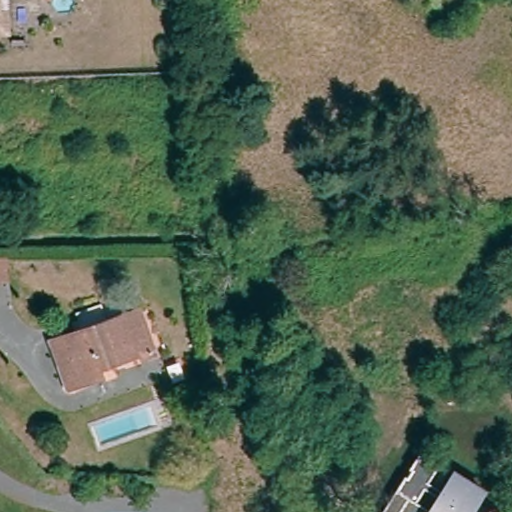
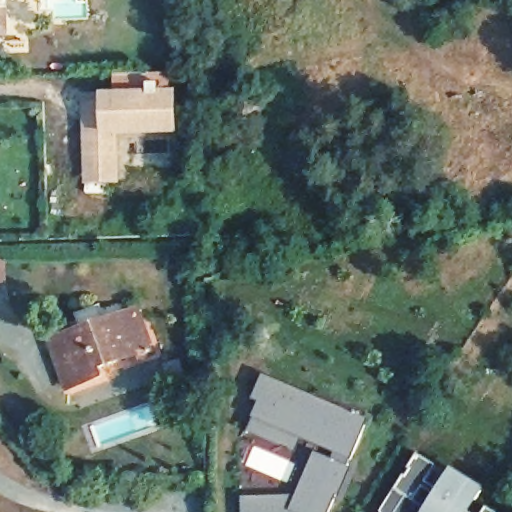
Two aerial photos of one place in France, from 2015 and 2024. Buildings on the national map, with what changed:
unchanged [(0,27),(0,0),(10,0),(10,26),(0,27)]
new [(87,180),(86,155),(85,102),(85,96),(104,95),(115,95),(114,73),(150,72),(150,84),(159,84),(160,94),(174,93),(175,123),(175,130),(115,131),(116,154),(116,179),(87,180)]
unchanged [(5,255),(5,281),(0,282),(0,255),(5,255)]
unchanged [(141,353),(97,369),(101,377),(67,390),(51,343),(139,311),(155,355),(143,358),(141,353)]
new [(305,478),(310,481),(321,455),(330,460),(335,448),(302,435),(295,451),(246,432),(250,425),(260,400),(254,398),(262,376),(315,398),(311,409),(331,417),(333,411),(365,424),(347,466),(350,467),(339,494),(336,492),(328,512),(242,512),(242,497),(275,496),(297,495),(305,478)]
unchanged [(428,482),(441,489),(455,466),(488,488),(474,512),(381,512),(405,475),(407,476),(412,470),(410,466),(418,452),(440,465),(428,482)]
unchanged [(488,508),(495,512),(487,512),(488,508)]

